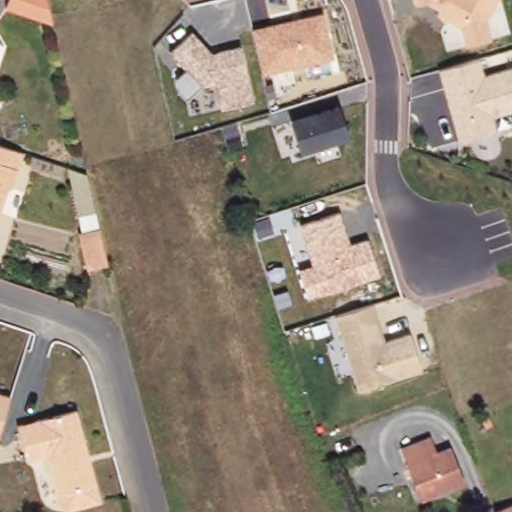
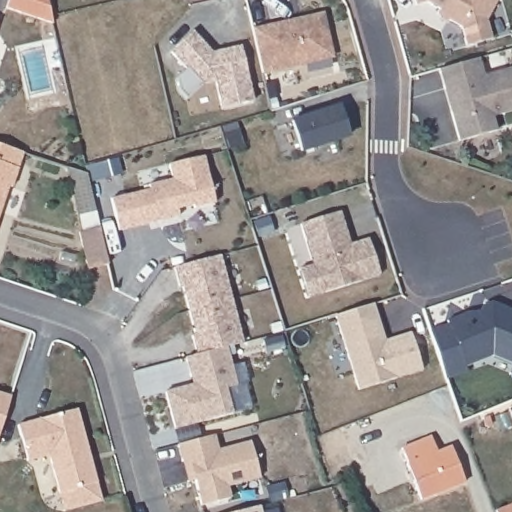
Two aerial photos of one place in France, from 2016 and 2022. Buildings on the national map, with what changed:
unchanged [(9,0),(47,0),(53,25),(6,10),(9,0)]
unchanged [(459,25),(434,12),(437,7),(429,3),(415,5),(413,0),(496,0),(485,20),(491,40),(469,49),(459,25)]
unchanged [(253,30),(322,13),(333,59),(265,75),(253,30)]
unchanged [(219,109),(214,85),(203,87),(198,82),(183,97),(178,91),(177,78),(186,67),(172,52),(195,32),(214,55),(239,47),(251,103),(219,109)]
unchanged [(478,60),(482,76),(512,69),(512,109),(491,116),(494,132),(458,144),(437,71),(478,60)]
unchanged [(292,121),(340,107),(349,141),(301,154),(292,121)]
unchanged [(23,157),(10,192),(7,191),(0,210),(0,149),(23,157)]
new [(150,190),(149,186),(173,180),(169,165),(204,157),(214,204),(194,208),(194,206),(177,210),(178,217),(119,231),(111,199),(150,190)]
unchanged [(298,269),(313,264),(302,224),(341,212),(351,244),(369,238),(380,277),(308,300),(298,269)]
unchanged [(89,269),(82,240),(102,235),(107,255),(109,264),(89,269)]
new [(220,256),(242,342),(226,347),(196,355),(191,335),(194,335),(182,286),(178,287),(174,268),(220,256)]
unchanged [(336,316),(376,306),(384,340),(412,332),(422,372),(359,390),(336,316)]
new [(190,377),(185,357),(196,355),(226,347),(236,386),(224,388),(231,413),(174,428),(164,392),(192,384),(190,377)]
unchanged [(10,395),(0,424),(0,391),(10,395)]
unchanged [(57,492),(47,453),(25,460),(16,424),(76,408),(103,501),(78,508),(62,512),(57,492)]
new [(184,461),(180,443),(216,435),(220,449),(252,441),(261,477),(229,486),(232,497),(203,505),(196,479),(189,481),(184,461)]
unchanged [(428,435),(434,450),(449,445),(462,481),(419,497),(400,446),(428,435)]
unchanged [(512,500),(512,512),(493,512),(492,508),(493,508),(512,500)]
new [(261,512),(234,512),(259,506),(261,512)]

